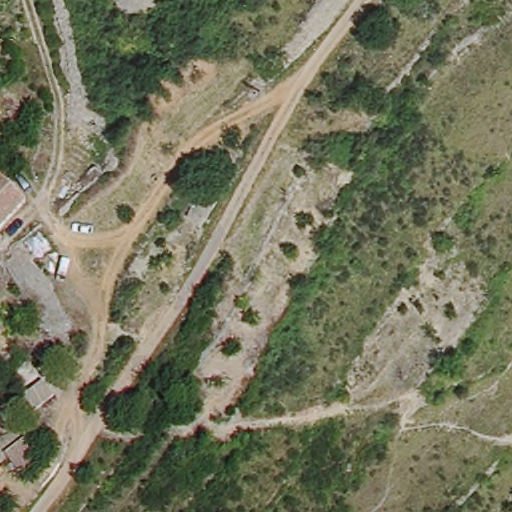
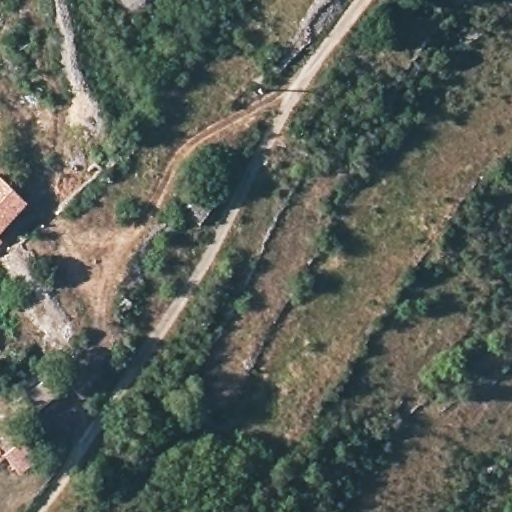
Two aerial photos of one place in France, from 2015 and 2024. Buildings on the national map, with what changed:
unchanged [(29,205),(0,231),(0,177),(2,175),(29,205)]
unchanged [(30,413),(17,402),(37,379),(50,392),(30,413)]
unchanged [(20,473),(1,453),(22,433),(41,452),(20,473)]

